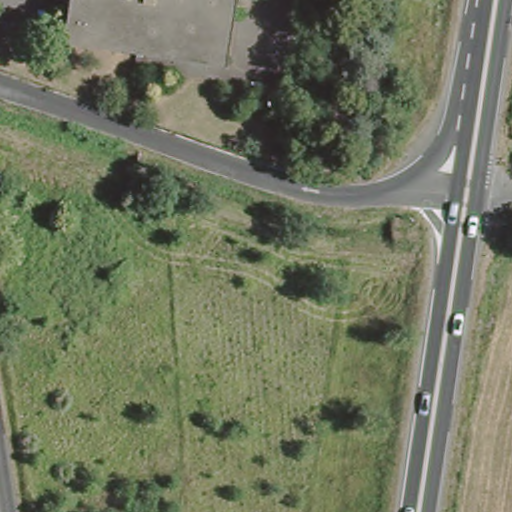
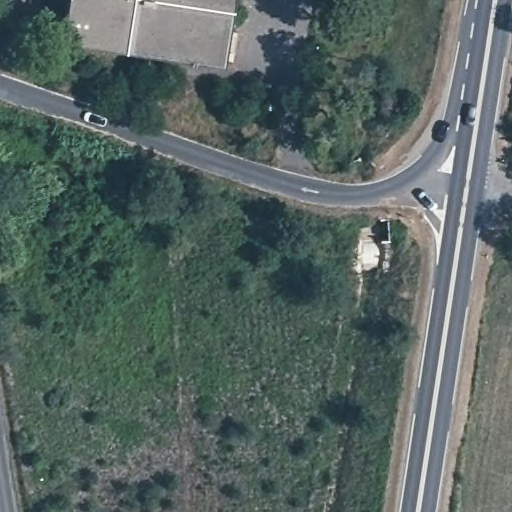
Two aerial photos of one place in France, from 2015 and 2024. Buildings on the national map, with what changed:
unchanged [(172,52),(64,35),(69,0),(232,0),(222,60),(172,52)]

